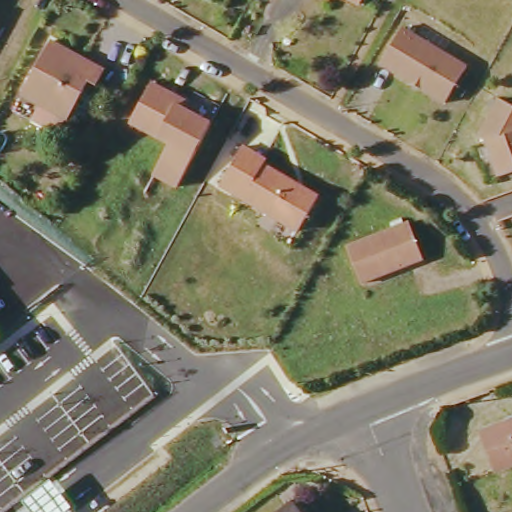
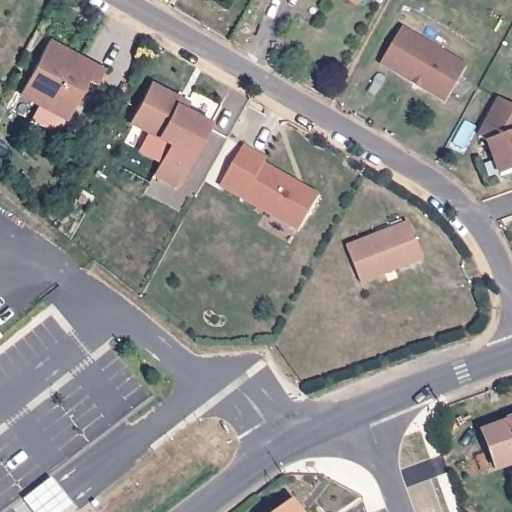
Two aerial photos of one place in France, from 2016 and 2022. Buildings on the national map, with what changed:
unchanged [(360,4),(353,0),(362,0),(360,4)]
unchanged [(462,65),(440,102),(415,87),(415,83),(409,80),(406,82),(376,63),(397,27),(462,65)]
unchanged [(101,74),(93,88),(85,83),(65,122),(62,121),(57,131),(48,133),(28,122),(36,107),(17,97),(47,43),(101,74)]
unchanged [(178,186),(153,174),(171,144),(131,122),(152,83),(180,97),(190,102),(186,110),(212,123),(178,186)]
unchanged [(483,142),(474,137),(495,99),(512,108),(512,170),(495,176),(483,142)]
unchanged [(267,164),(265,168),(319,200),(298,235),(265,215),(219,188),(243,149),(267,164)]
unchanged [(408,225),(423,263),(361,289),(346,250),(408,225)]
unchanged [(477,431),(499,423),(497,417),(512,412),(512,461),(490,469),(477,431)]
unchanged [(296,512),(280,512),(290,504),(296,512)]

